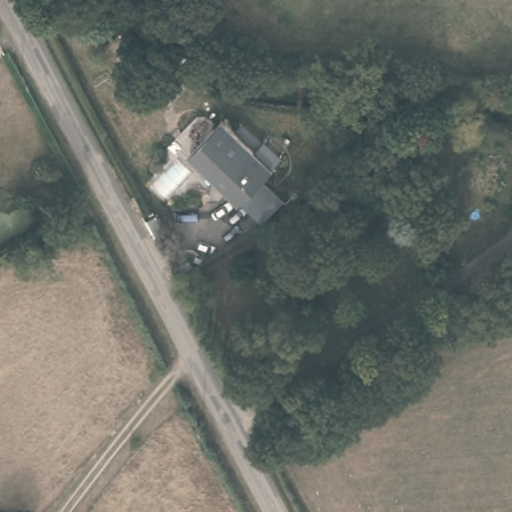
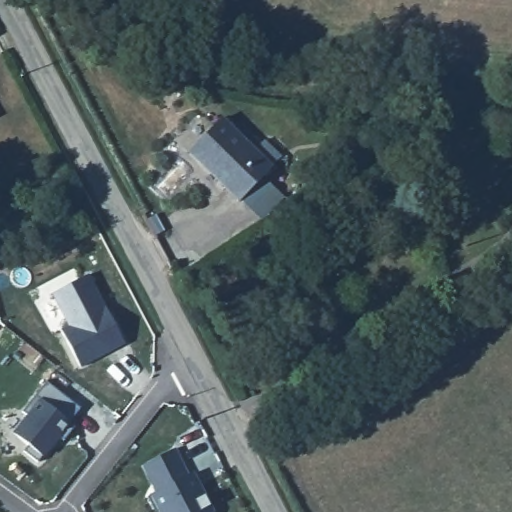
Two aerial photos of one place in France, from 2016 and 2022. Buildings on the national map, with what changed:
unchanged [(231,200),(219,188),(189,153),(224,120),(254,154),(267,169),(231,200)]
new [(89,275),(125,344),(81,367),(62,330),(70,327),(53,294),(89,275)]
new [(27,418),(21,413),(45,383),(79,410),(68,424),(74,428),(62,443),(57,438),(36,464),(22,453),(27,447),(13,436),(27,418)]
new [(186,474),(188,474),(191,472),(198,488),(210,512),(153,512),(145,496),(155,491),(141,464),(172,448),(186,474)]

